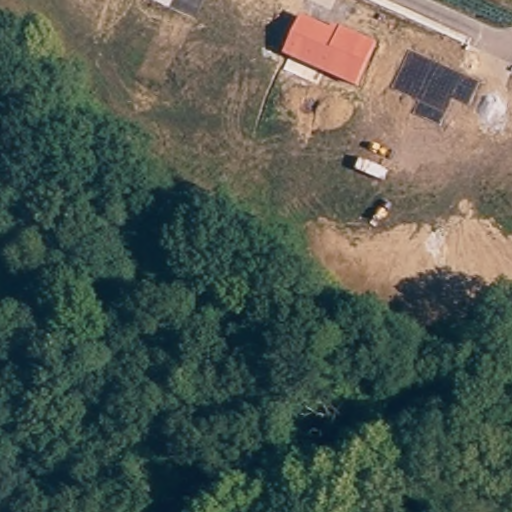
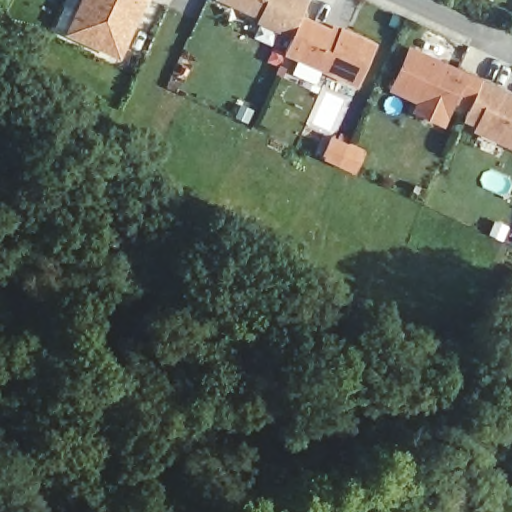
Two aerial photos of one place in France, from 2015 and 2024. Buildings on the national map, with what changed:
new [(66,36),(82,0),(149,0),(120,61),(66,36)]
new [(257,19),(218,1),(219,0),(310,0),(301,16),(291,40),(255,24),(257,19)]
unchanged [(330,29),(332,25),(376,43),(357,89),(283,56),(301,16),(330,29)]
new [(473,136),(476,130),(463,125),(468,114),(455,109),(444,129),(413,116),(417,105),(389,93),(408,48),(512,95),(512,153),(473,136)]

